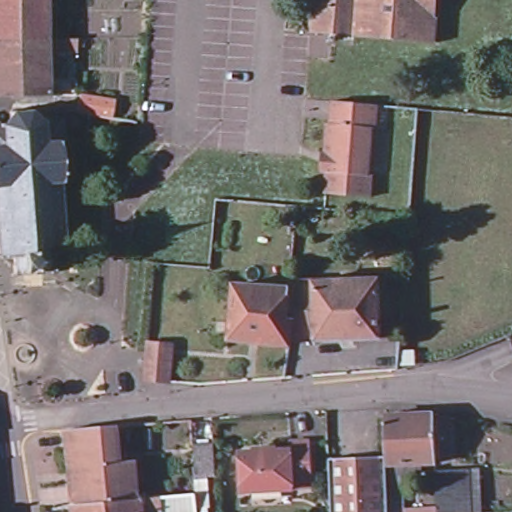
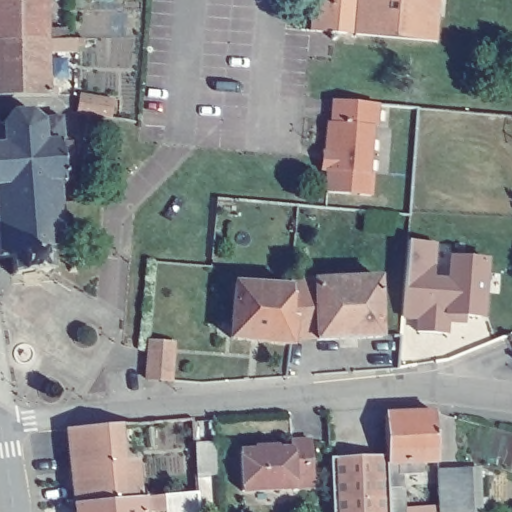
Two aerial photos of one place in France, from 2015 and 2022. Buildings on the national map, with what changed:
unchanged [(45,0),(45,36),(65,35),(65,46),(75,45),(76,37),(80,37),(81,45),(88,45),(88,50),(78,51),(78,58),(47,61),(47,91),(57,91),(57,102),(47,102),(0,105),(0,0),(45,0)]
unchanged [(314,31),(316,0),(361,0),(358,35),(314,31)]
unchanged [(358,35),(361,0),(440,0),(437,41),(358,35)]
unchanged [(322,149),(327,150),(329,120),(333,121),(335,97),(380,101),(378,124),(375,124),(371,171),(375,171),(372,193),(327,189),(330,167),(325,167),(320,167),(322,149)]
unchanged [(82,98),(116,102),(113,120),(90,117),(80,116),(82,98)]
unchanged [(82,150),(85,189),(72,190),(67,189),(67,207),(71,207),(71,212),(68,212),(70,232),(72,232),(72,236),(70,236),(72,256),(73,256),(74,261),(58,263),(59,275),(62,279),(60,281),(57,279),(53,279),(53,280),(48,280),(48,279),(37,280),(37,281),(24,281),(22,283),(22,284),(19,284),(17,281),(20,279),(18,267),(2,267),(1,261),(5,261),(3,241),(0,241),(0,237),(3,237),(2,217),(0,217),(0,213),(2,213),(1,197),(0,197),(0,132),(7,130),(8,132),(18,127),(13,117),(17,116),(20,121),(33,122),(36,117),(38,119),(37,122),(46,129),(50,125),(67,126),(71,122),(73,126),(70,128),(72,150),(82,150)]
unchanged [(309,261),(292,260),(295,235),(310,237),(309,261)]
new [(417,333),(417,319),(402,319),(405,289),(408,240),(437,243),(435,276),(447,277),(450,256),(488,260),(484,319),(465,317),(465,325),(448,323),(448,335),(417,333)]
unchanged [(291,293),(291,285),(299,286),(298,292),(317,292),(320,349),(293,349),(296,328),(288,327),(290,301),(291,293)]
unchanged [(382,289),(385,349),(320,351),(320,349),(317,292),(382,289)]
unchanged [(296,328),(293,349),(292,356),(233,348),(240,293),(290,301),(288,327),(296,328)]
unchanged [(175,345),(172,383),(147,381),(149,343),(175,345)]
unchanged [(442,418),(442,469),(392,470),(392,459),(392,418),(442,418)]
unchanged [(81,511),(72,434),(148,429),(153,503),(178,501),(203,498),(204,512),(81,512),(81,511)]
unchanged [(247,502),(245,462),(260,461),(260,458),(282,457),(282,460),(299,459),(298,450),(317,449),(319,489),(300,491),(301,499),(247,502)]
unchanged [(222,481),(202,482),(202,452),(220,451),(222,481)]
unchanged [(410,512),(338,512),(336,462),(392,459),(392,470),(393,491),(409,491),(410,512)]
unchanged [(442,477),(474,478),(476,512),(442,512),(442,477)]

